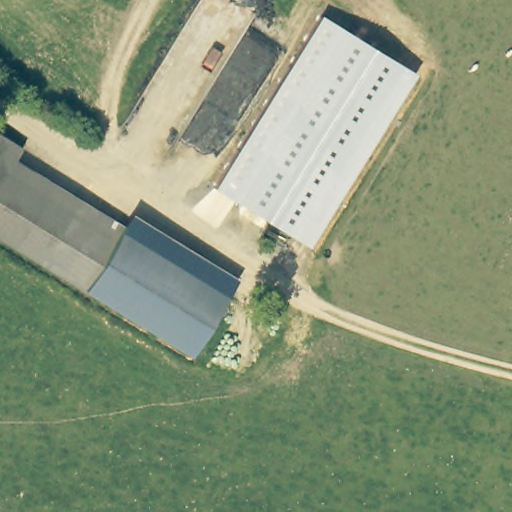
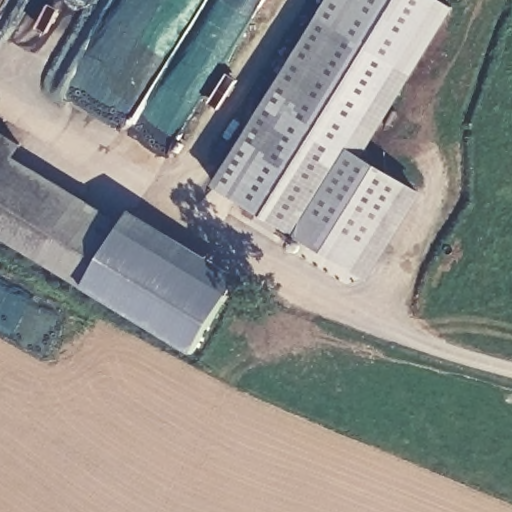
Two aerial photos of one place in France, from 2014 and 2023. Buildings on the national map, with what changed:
new [(319,14),(329,0),(441,0),(456,9),(415,72),(319,14)]
unchanged [(319,14),(415,72),(308,246),(214,186),(319,14)]
unchanged [(114,226),(110,230),(215,297),(181,355),(0,241),(0,135),(13,144),(5,156),(114,226)]
new [(364,156),(424,196),(368,282),(308,246),(364,156)]
unchanged [(120,230),(130,211),(238,277),(190,360),(181,355),(215,297),(110,230),(114,226),(120,230)]

